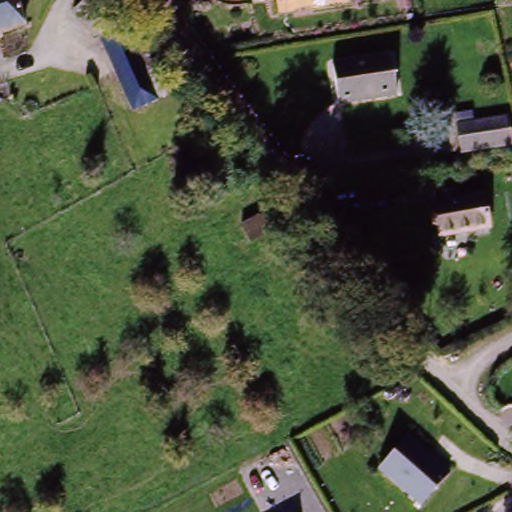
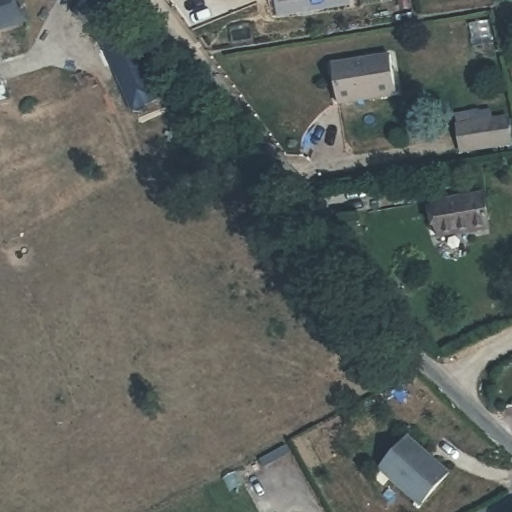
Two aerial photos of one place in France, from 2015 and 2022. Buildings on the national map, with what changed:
unchanged [(23,21),(0,27),(0,0),(17,0),(23,21)]
unchanged [(110,21),(89,40),(67,15),(86,0),(92,0),(110,21)]
unchanged [(278,5),(277,0),(306,0),(278,5)]
unchanged [(121,32),(152,101),(128,111),(98,41),(121,32)]
unchanged [(387,54),(396,96),(338,105),(332,63),(387,54)]
unchanged [(505,116),(507,142),(458,147),(457,123),(505,116)]
unchanged [(479,195),(485,232),(437,238),(431,202),(479,195)]
unchanged [(271,228),(281,244),(260,257),(251,243),(271,228)]
unchanged [(387,466),(416,435),(455,472),(426,503),(387,466)]

